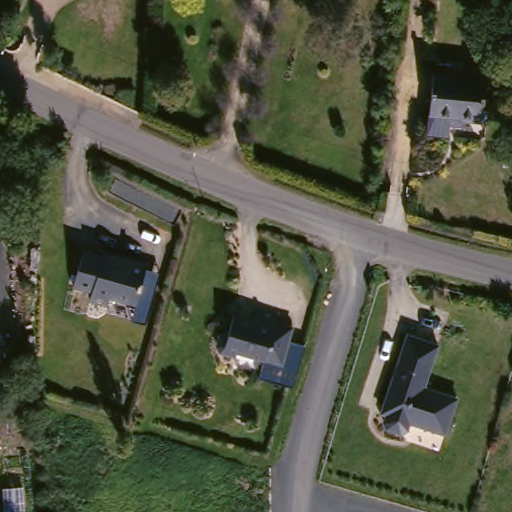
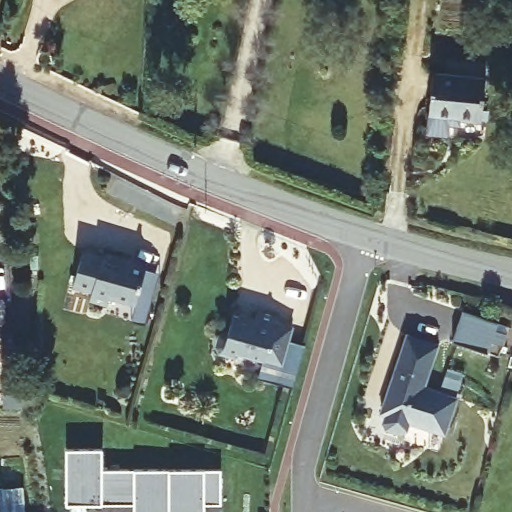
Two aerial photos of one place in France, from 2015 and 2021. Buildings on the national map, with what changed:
unchanged [(465,117),(465,114),(429,110),(434,70),(490,77),(485,120),(465,117)]
unchanged [(110,290),(108,300),(88,295),(91,285),(73,280),(83,245),(101,250),(102,246),(130,254),(129,257),(146,262),(136,297),(110,290)]
unchanged [(283,366),(237,353),(236,358),(221,355),(218,348),(220,337),(226,335),(229,335),(233,318),(255,324),(258,314),(277,319),(275,324),(293,328),(283,366)]
unchanged [(444,342),(423,381),(453,397),(434,430),(401,412),(398,419),(391,422),(378,415),(376,407),(380,401),(376,398),(416,327),(444,342)]
new [(67,451),(102,451),(103,472),(134,472),(204,472),(220,472),(220,506),(203,506),(204,512),(134,512),(134,505),(68,505),(67,451)]

